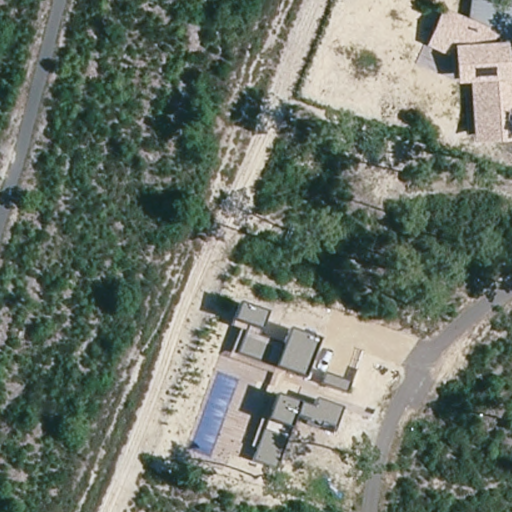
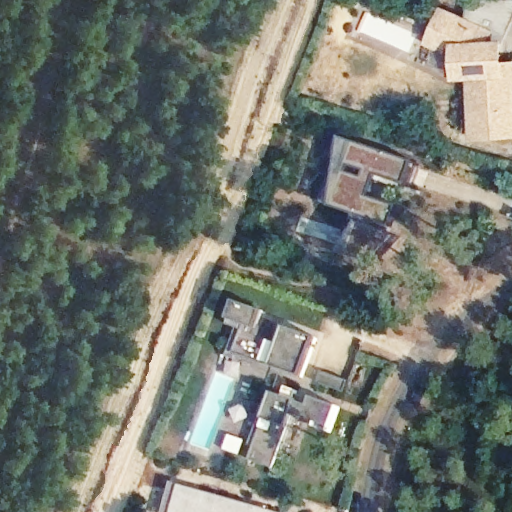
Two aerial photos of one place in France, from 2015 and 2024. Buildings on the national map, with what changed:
unchanged [(509,60),(512,60),(512,141),(474,141),(471,81),(457,82),(455,53),(427,46),(441,9),(468,20),(471,0),(512,0),(512,31),(507,42),(509,60)]
new [(335,208),(342,137),(418,162),(410,186),(381,177),(374,199),(403,209),(396,230),(335,208)]
unchanged [(284,342),(289,329),(321,342),(306,379),(277,368),(236,356),(245,327),(230,321),(238,302),(266,316),(260,332),(284,342)]
unchanged [(351,385),(347,395),(321,386),(324,373),(351,385)]
unchanged [(265,421),(273,395),(299,405),(314,410),(316,401),(341,411),(334,430),(319,427),(318,430),(309,426),(310,422),(295,418),(292,427),(298,431),(285,465),(279,461),(275,470),(252,463),(265,421)]
new [(270,512),(175,512),(182,485),(270,512)]

